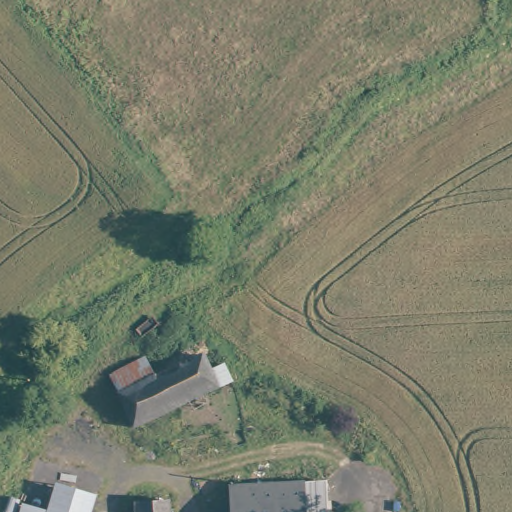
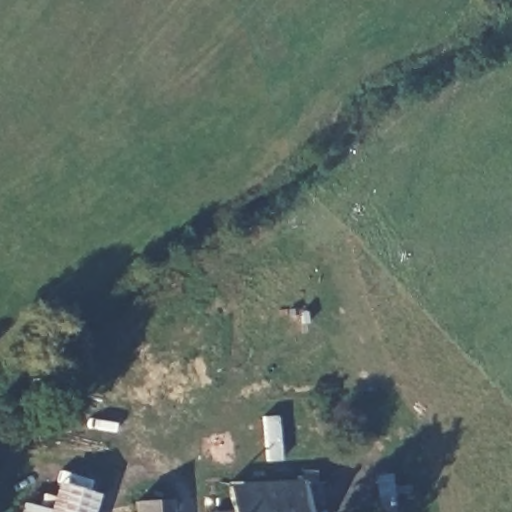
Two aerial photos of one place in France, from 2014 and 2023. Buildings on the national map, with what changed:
demolished [(120,393),(111,373),(156,354),(163,372),(211,351),(219,371),(226,368),(231,382),(134,425),(120,393)]
unchanged [(101,499),(97,512),(51,512),(61,485),(101,499)]
unchanged [(231,512),(230,490),(305,487),(306,504),(323,504),(324,512),(231,512)]
unchanged [(176,498),(177,512),(139,512),(138,500),(176,498)]
unchanged [(40,512),(23,512),(25,506),(40,512)]

